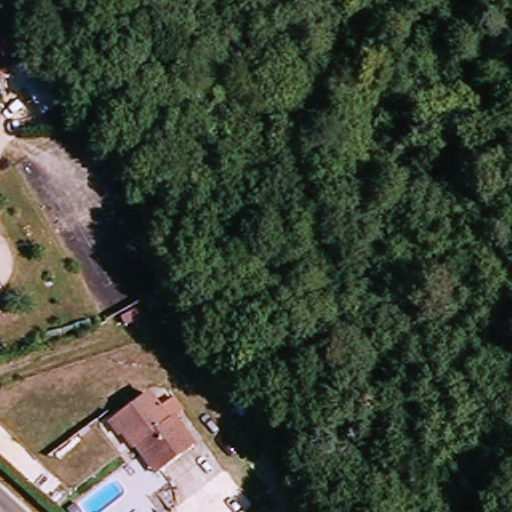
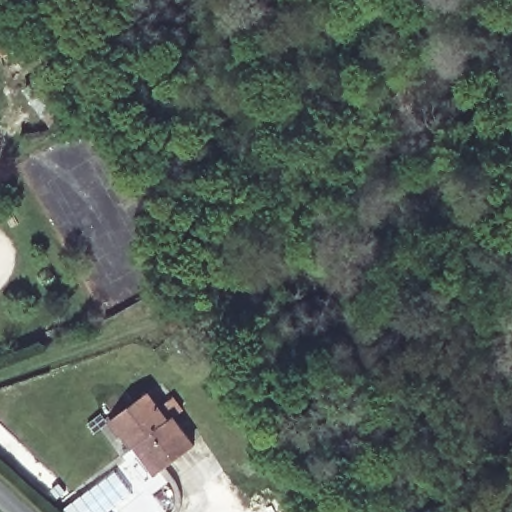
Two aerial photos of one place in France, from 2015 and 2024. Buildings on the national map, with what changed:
unchanged [(139,448),(119,420),(154,395),(174,423),(179,420),(199,448),(164,473),(160,476),(139,448)]
unchanged [(135,490),(107,512),(79,512),(73,505),(121,469),(135,490)]

